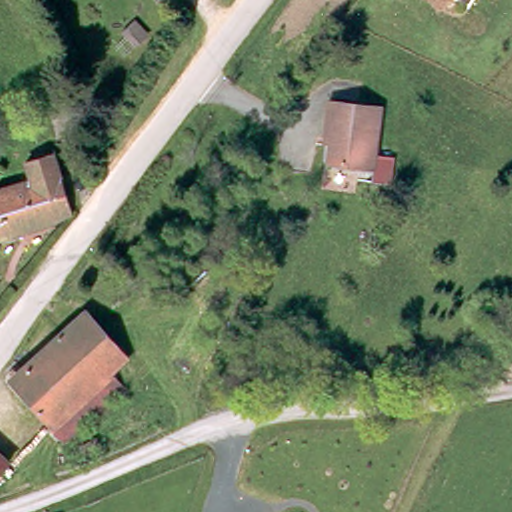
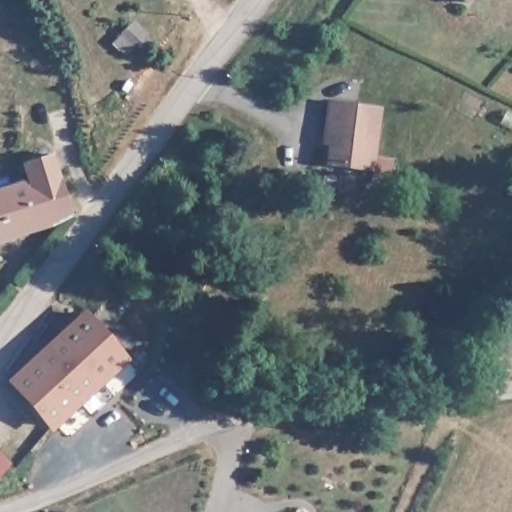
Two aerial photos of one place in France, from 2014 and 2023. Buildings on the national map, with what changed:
unchanged [(453,0),(479,0),(470,13),(453,0)]
unchanged [(492,0),(498,0),(497,3),(492,0)]
unchanged [(391,180),(375,179),(376,165),(332,160),(335,136),(328,135),(333,97),(381,103),(377,155),(392,157),(391,180)]
unchanged [(32,185),(30,165),(58,158),(63,180),(70,219),(0,241),(0,195),(32,185)]
unchanged [(86,319),(122,361),(106,376),(118,392),(54,440),(7,380),(86,319)]
unchanged [(0,487),(0,465),(12,473),(0,487)]

